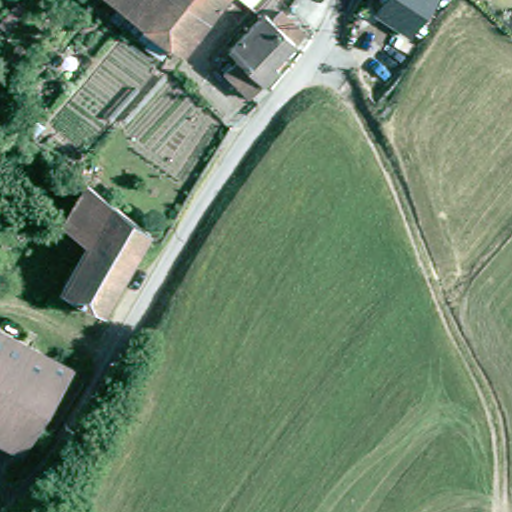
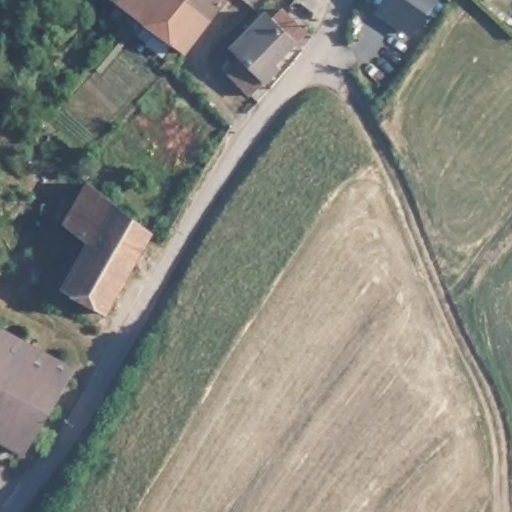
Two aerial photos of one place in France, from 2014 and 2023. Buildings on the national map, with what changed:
unchanged [(173,59),(145,36),(119,16),(98,0),(222,0),(173,59)]
unchanged [(268,70),(255,83),(252,84),(238,98),(226,86),(215,76),(230,61),(222,53),(257,16),(262,21),(270,12),(296,37),(287,46),(285,44),(270,60),(274,64),(268,70)]
unchanged [(106,308),(62,284),(87,238),(80,233),(60,220),(85,178),(150,228),(106,308)]
unchanged [(0,451),(0,330),(68,367),(12,458),(0,451)]

